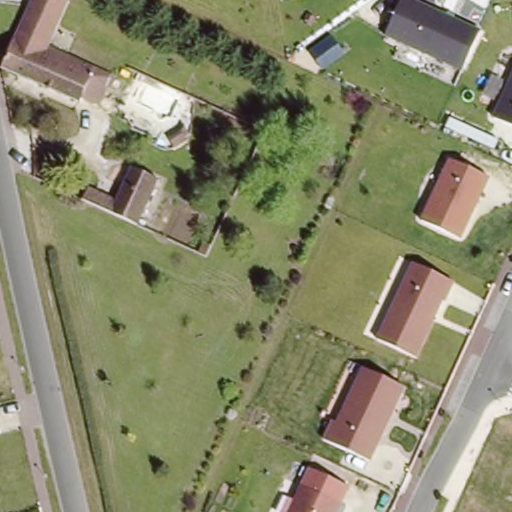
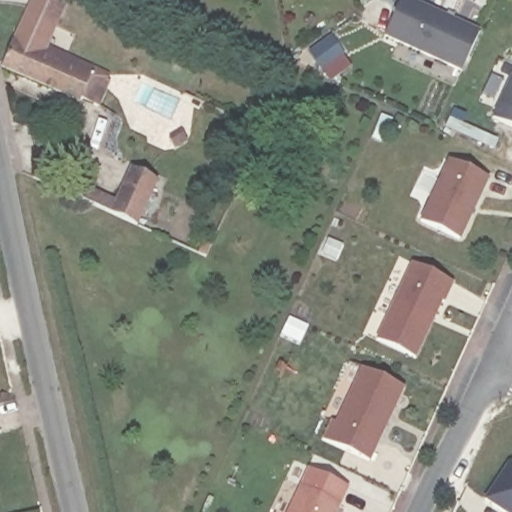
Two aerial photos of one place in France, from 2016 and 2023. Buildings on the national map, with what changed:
unchanged [(45,50),(16,37),(33,0),(67,0),(45,50)]
unchanged [(398,0),(421,0),(479,26),(461,67),(384,33),(398,0)]
unchanged [(16,37),(105,80),(99,91),(103,92),(94,111),(78,103),(76,107),(0,71),(16,37)]
unchanged [(492,115),(512,71),(512,124),(492,115)]
unchanged [(186,136),(181,141),(184,144),(175,152),(166,144),(179,130),(186,136)]
unchanged [(489,175),(460,237),(419,219),(449,155),(489,175)]
unchanged [(135,170),(161,182),(151,202),(140,225),(114,213),(87,200),(92,190),(119,202),(125,190),(135,170)]
unchanged [(203,257),(194,253),(199,243),(208,247),(203,257)]
unchanged [(453,279),(417,355),(376,335),(412,260),(453,279)]
unchanged [(404,385),(369,459),(322,437),(330,418),(336,420),(361,364),(404,385)]
new [(508,463),(512,462),(512,512),(506,512),(486,499),(508,463)]
unchanged [(336,512),(287,512),(301,484),(341,503),(336,512)]

